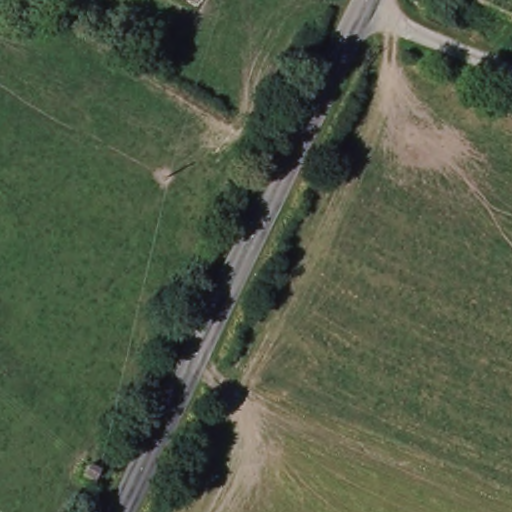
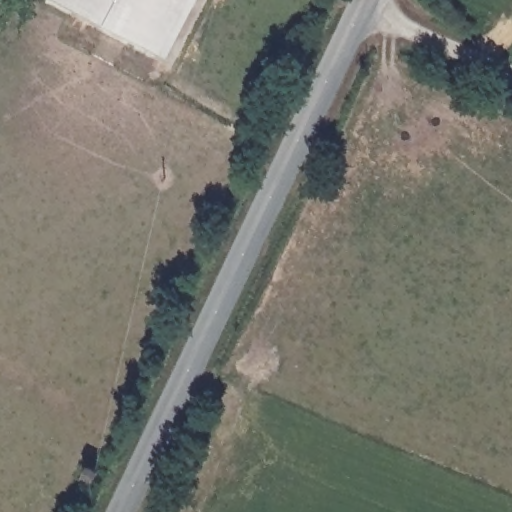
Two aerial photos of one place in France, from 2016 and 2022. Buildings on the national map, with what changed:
new [(160,53),(58,0),(188,0),(160,53)]

